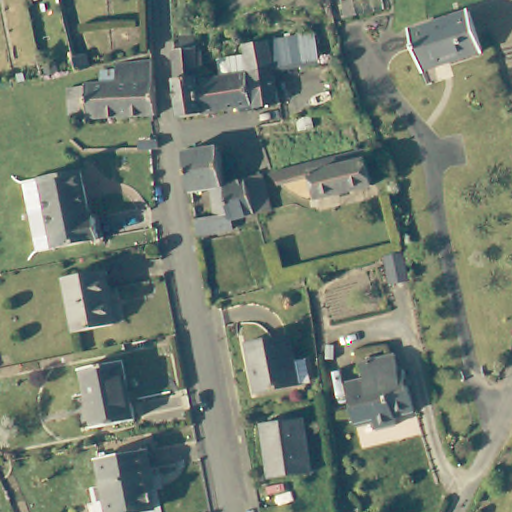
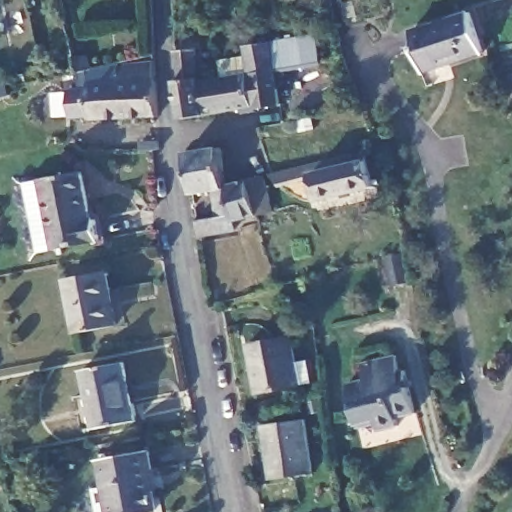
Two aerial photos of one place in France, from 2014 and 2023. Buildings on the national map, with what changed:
unchanged [(468,9),(485,53),(424,75),(408,31),(468,9)]
unchanged [(270,71),(266,43),(333,32),(336,46),(341,60),(270,71)]
unchanged [(169,53),(178,52),(178,36),(189,35),(190,38),(192,38),(193,43),(197,80),(206,79),(245,75),(249,109),(250,119),(237,119),(236,111),(176,118),(169,53)]
unchanged [(245,75),(242,47),(261,44),(266,43),(270,71),(274,105),(249,109),(245,75)]
unchanged [(72,55),(81,53),(85,52),(90,69),(76,72),(72,55)]
unchanged [(65,119),(64,91),(85,91),(86,86),(100,86),(100,73),(116,73),(116,66),(154,62),(156,118),(65,119)]
unchanged [(256,211),(231,216),(232,228),(198,232),(197,228),(194,206),(214,204),(212,189),(192,191),(186,148),(220,144),(226,183),(247,178),(256,211)]
unchanged [(370,156),(378,191),(325,204),(318,181),(282,190),(274,181),(370,156)]
unchanged [(34,182),(74,174),(84,221),(89,220),(94,243),(49,252),(34,182)]
unchanged [(64,274),(105,265),(116,320),(75,328),(64,274)]
unchanged [(255,389),(247,340),(287,332),(297,382),(255,389)]
unchanged [(348,382),(369,376),(365,358),(398,351),(407,385),(352,396),(348,382)]
unchanged [(83,367),(126,358),(137,416),(95,426),(83,367)]
unchanged [(407,385),(416,421),(380,431),(377,421),(359,426),(352,396),(407,385)]
unchanged [(271,481),(263,426),(306,420),(313,475),(271,481)]
unchanged [(106,511),(100,482),(107,480),(102,456),(144,447),(157,509),(145,512),(126,512),(125,507),(106,511)]

